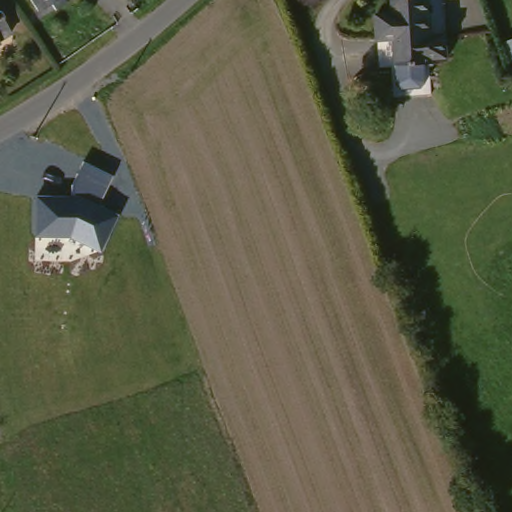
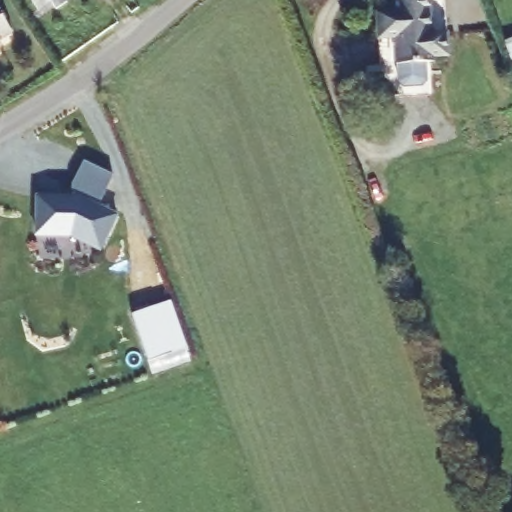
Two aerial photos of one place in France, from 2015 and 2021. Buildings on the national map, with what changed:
unchanged [(41,9),(35,0),(55,0),(41,9)]
unchanged [(62,5),(58,0),(70,0),(62,5)]
unchanged [(383,33),(381,8),(400,7),(399,0),(435,0),(436,9),(432,10),(432,28),(453,25),(454,49),(441,49),(440,53),(405,57),(386,58),(383,33)]
unchanged [(4,28),(0,31),(0,22),(4,28)]
unchanged [(116,174),(101,203),(120,213),(101,251),(69,236),(36,238),(35,196),(72,193),(73,181),(84,160),(116,174)]
new [(169,300),(178,323),(188,349),(151,363),(132,314),(155,305),(169,300)]

